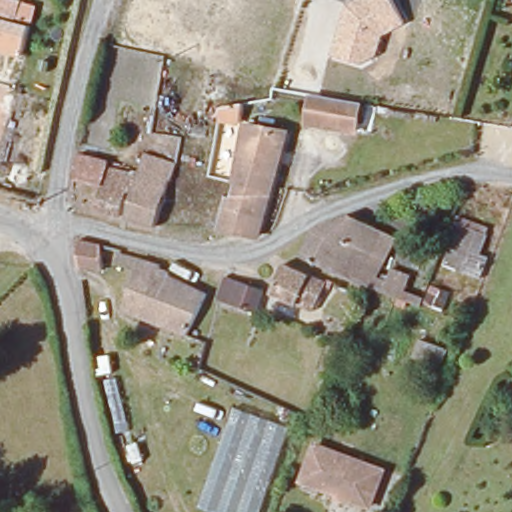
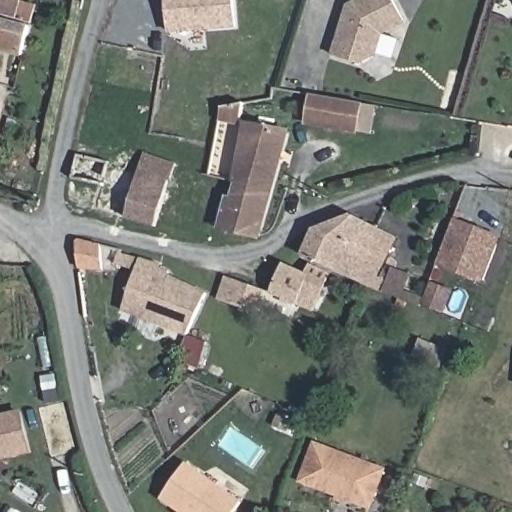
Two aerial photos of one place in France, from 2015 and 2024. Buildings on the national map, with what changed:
unchanged [(20,58),(0,53),(0,0),(18,0),(37,6),(20,58)]
new [(166,0),(234,0),(236,29),(169,34),(166,0)]
unchanged [(379,57),(364,64),(335,57),(335,43),(348,6),(360,0),(394,0),(407,24),(385,37),(379,57)]
unchanged [(306,108),(308,95),(326,99),(345,102),(355,104),(350,130),(331,126),(322,124),(304,120),(306,108)]
unchanged [(221,194),(229,180),(247,119),(285,134),(255,238),(213,229),(221,194)]
unchanged [(100,169),(99,175),(131,179),(136,158),(170,167),(166,181),(157,216),(154,229),(89,214),(95,193),(65,183),(70,162),(100,169)]
unchanged [(377,225),(365,260),(385,271),(380,289),(295,259),(305,234),(345,212),(377,225)]
unchanged [(478,277),(437,260),(453,219),(494,236),(478,277)]
unchanged [(158,250),(161,251),(160,259),(172,262),(170,268),(207,281),(188,328),(125,306),(137,267),(117,260),(124,241),(158,250)]
unchanged [(72,242),(96,246),(99,266),(79,274),(75,269),(72,242)]
unchanged [(326,283),(325,288),(335,291),(330,308),(317,303),(313,314),(271,297),(283,268),(326,283)]
unchanged [(258,289),(250,314),(218,301),(226,277),(258,289)]
new [(31,451),(0,460),(0,415),(22,409),(31,451)]
unchanged [(363,506),(296,475),(313,440),(381,470),(363,506)]
new [(160,501),(187,463),(242,501),(234,512),(176,512),(160,501)]

